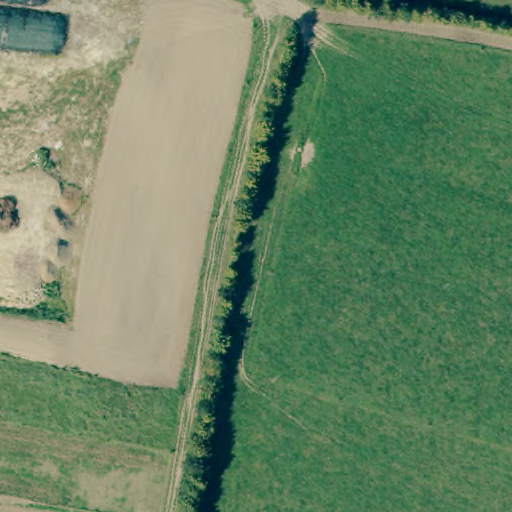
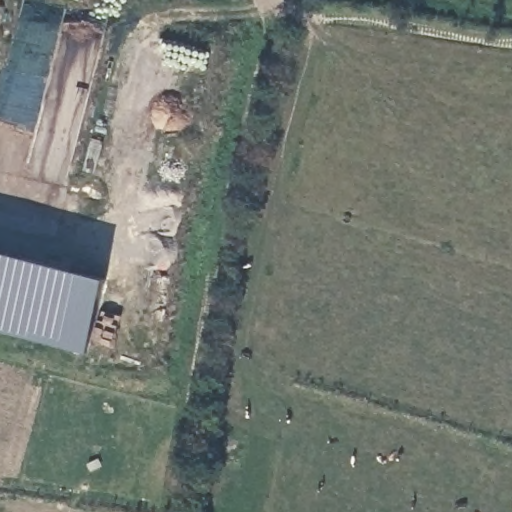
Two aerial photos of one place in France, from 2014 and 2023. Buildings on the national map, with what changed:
new [(0,329),(0,250),(110,278),(90,352),(0,329)]

